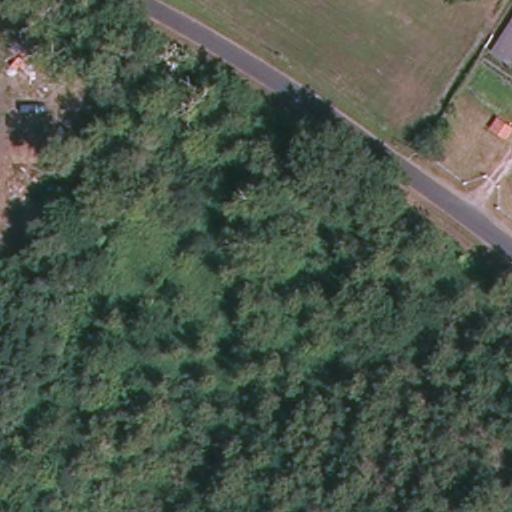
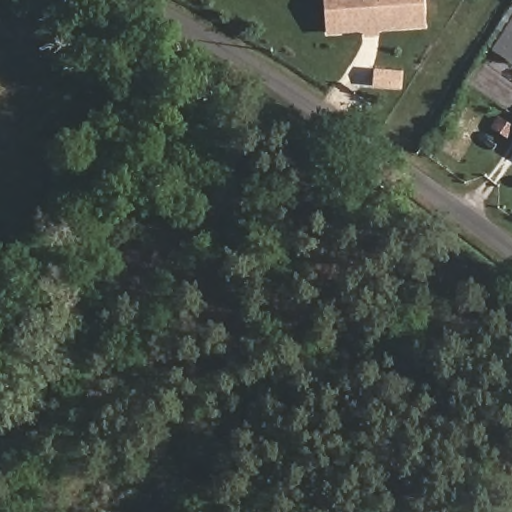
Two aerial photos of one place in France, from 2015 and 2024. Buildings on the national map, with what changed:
new [(334,39),(330,0),(425,0),(428,30),(334,39)]
unchanged [(509,79),(498,51),(512,27),(512,74),(509,79)]

